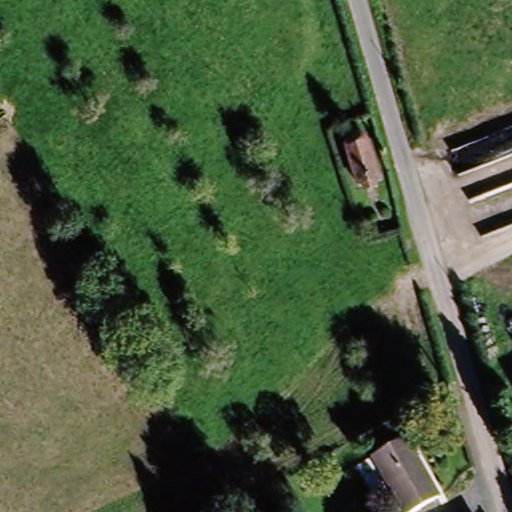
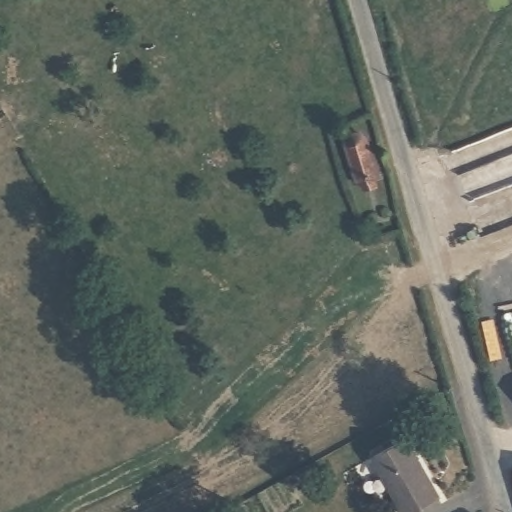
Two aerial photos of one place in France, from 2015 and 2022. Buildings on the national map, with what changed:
unchanged [(375,178),(378,185),(368,188),(366,181),(359,183),(348,142),(352,134),(365,132),(379,175),(375,178)]
unchanged [(438,497),(414,512),(404,512),(372,458),(403,439),(438,497)]

